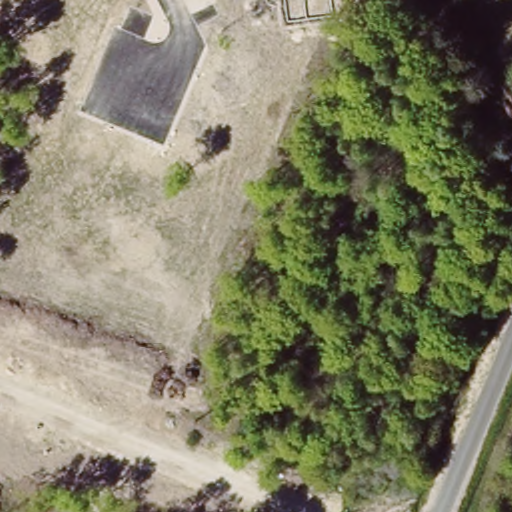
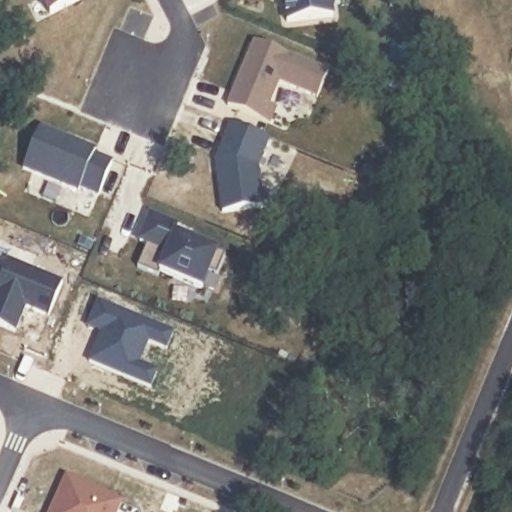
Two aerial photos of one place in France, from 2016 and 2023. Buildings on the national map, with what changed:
new [(42,0),(78,0),(50,16),(42,0)]
unchanged [(283,0),(332,0),(335,17),(286,24),(283,0)]
new [(280,82),(272,105),(279,107),(272,125),(227,105),(255,41),(330,72),(319,99),(280,82)]
new [(223,213),(217,162),(232,124),(271,140),(260,168),(265,207),(223,213)]
new [(80,189),(79,192),(23,168),(40,125),(97,149),(95,154),(114,161),(100,197),(80,189)]
new [(211,272),(204,291),(160,273),(159,276),(139,267),(147,247),(137,243),(149,212),(181,226),(179,233),(219,250),(228,255),(219,276),(211,272)]
new [(27,307),(18,333),(0,326),(0,276),(7,258),(64,281),(50,317),(27,307)]
new [(119,512),(51,512),(67,477),(124,502),(119,512)]

